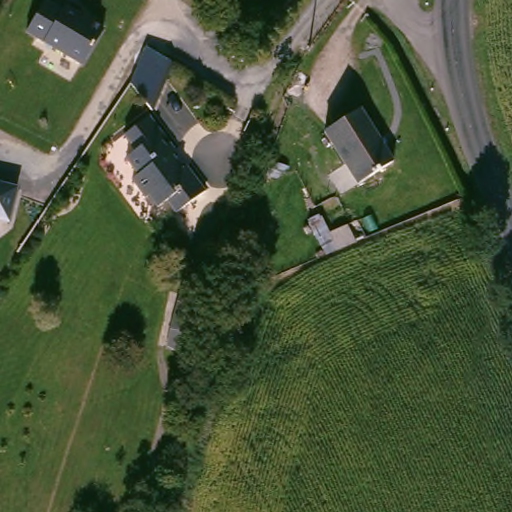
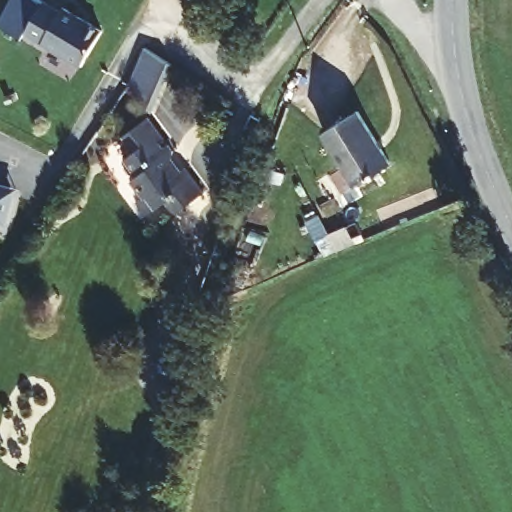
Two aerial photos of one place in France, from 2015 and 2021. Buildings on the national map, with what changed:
unchanged [(53,0),(104,29),(82,65),(25,33),(46,0),(53,0)]
unchanged [(171,61),(150,109),(128,81),(144,44),(171,61)]
unchanged [(139,164),(124,151),(135,139),(121,125),(142,103),(171,137),(161,145),(170,156),(180,148),(200,172),(172,196),(163,188),(155,196),(131,172),(139,164)]
unchanged [(394,160),(363,182),(329,131),(362,109),(394,160)]
unchanged [(10,224),(0,222),(0,182),(19,187),(10,224)]

